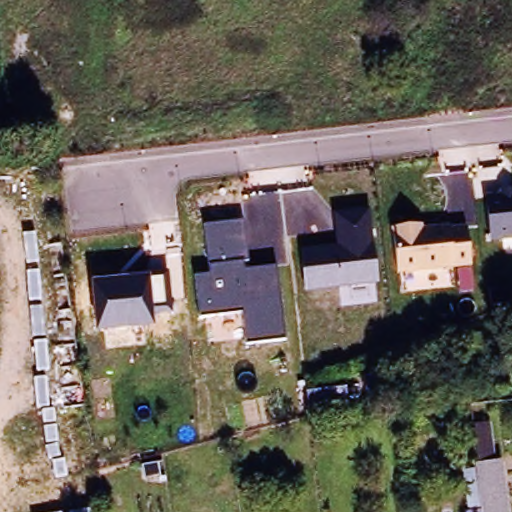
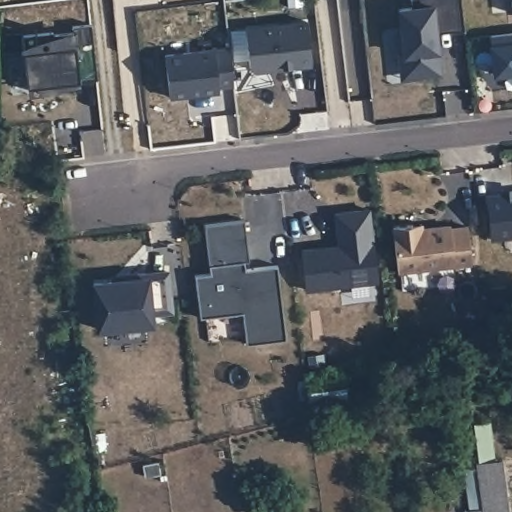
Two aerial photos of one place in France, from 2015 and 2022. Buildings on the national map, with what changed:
new [(397,11),(410,9),(409,0),(459,0),(462,23),(462,32),(435,35),(439,76),(422,78),(400,81),(393,17),(398,17),(397,11)]
new [(507,14),(505,0),(512,0),(512,13),(507,14)]
new [(305,23),(310,66),(293,68),(293,66),(268,69),(268,71),(254,72),(248,68),(244,31),(305,23)]
new [(20,37),(51,33),(52,36),(71,34),(70,28),(89,26),(94,68),(95,81),(78,83),(79,91),(66,92),(40,95),(39,87),(26,89),(20,37)]
new [(493,76),(490,47),(489,38),(512,35),(512,74),(493,76)]
new [(228,50),(232,87),(217,89),(217,94),(168,100),(163,57),(228,50)]
unchanged [(490,239),(487,196),(499,195),(500,191),(512,190),(512,237),(490,239)]
unchanged [(300,250),(337,246),(333,213),(372,209),(378,284),(305,293),(300,250)]
unchanged [(194,275),(210,274),(204,226),(243,222),(248,261),(243,262),(244,270),(277,267),(286,340),(246,345),(242,312),(200,316),(194,275)]
unchanged [(398,274),(393,227),(422,223),(422,228),(468,222),(473,267),(398,274)]
unchanged [(92,280),(168,272),(172,313),(152,316),(153,327),(97,331),(92,280)]
unchanged [(343,385),(347,412),(311,420),(305,390),(343,385)]
unchanged [(476,460),(478,459),(473,421),(487,420),(492,458),(501,457),(508,512),(466,512),(466,509),(482,507),(476,460)]

